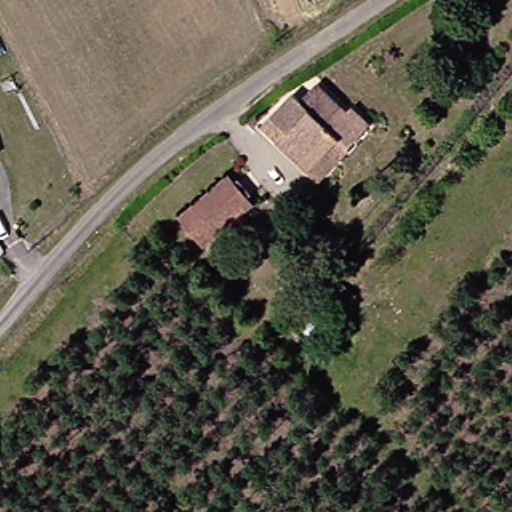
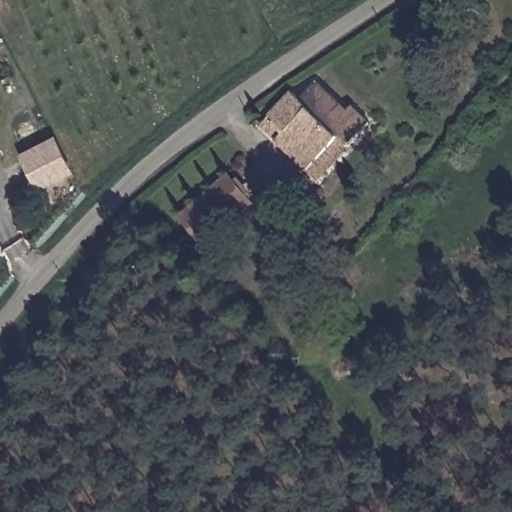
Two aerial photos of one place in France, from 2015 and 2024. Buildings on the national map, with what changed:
unchanged [(342,155),(336,149),(301,179),(265,141),(276,132),(260,113),(289,88),(295,95),(313,80),(343,111),(350,105),(373,129),(342,155)]
new [(37,189),(19,152),(56,134),(74,171),(37,189)]
unchanged [(257,192),(190,249),(165,219),(232,162),(257,192)]

